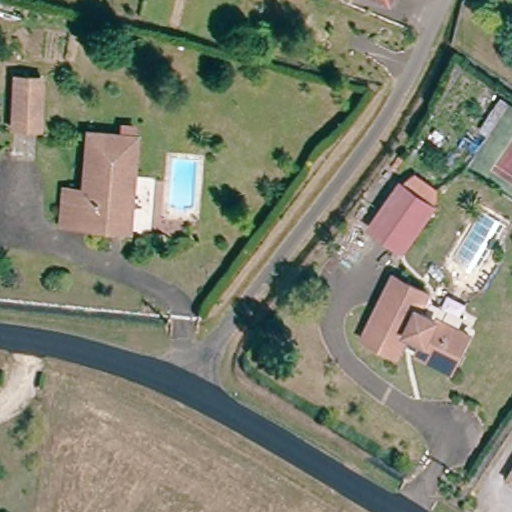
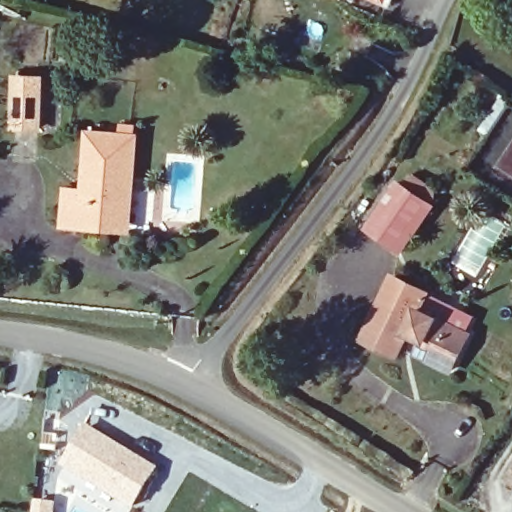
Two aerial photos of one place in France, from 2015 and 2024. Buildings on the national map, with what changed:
unchanged [(39,81),(35,128),(10,125),(15,78),(39,81)]
unchanged [(94,232),(54,228),(59,189),(75,190),(81,131),(134,136),(130,193),(127,220),(126,235),(94,232)]
unchanged [(430,195),(401,235),(372,213),(399,174),(430,195)]
unchanged [(425,285),(416,304),(466,329),(451,363),(420,348),(426,335),(405,324),(392,349),(363,334),(394,269),(425,285)]
new [(87,423),(159,467),(131,511),(60,469),(87,423)]
unchanged [(512,477),(512,482),(509,481),(512,477)]
new [(32,499),(57,502),(56,512),(31,512),(32,499)]

